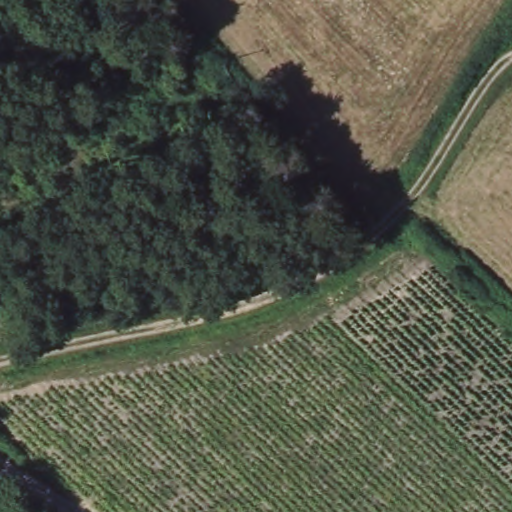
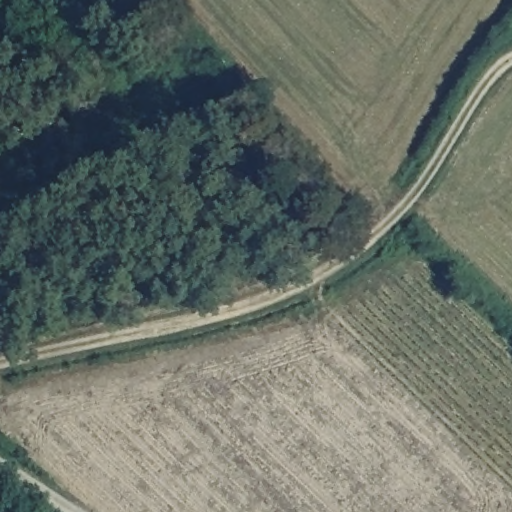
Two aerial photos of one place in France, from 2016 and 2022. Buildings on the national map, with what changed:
[]

